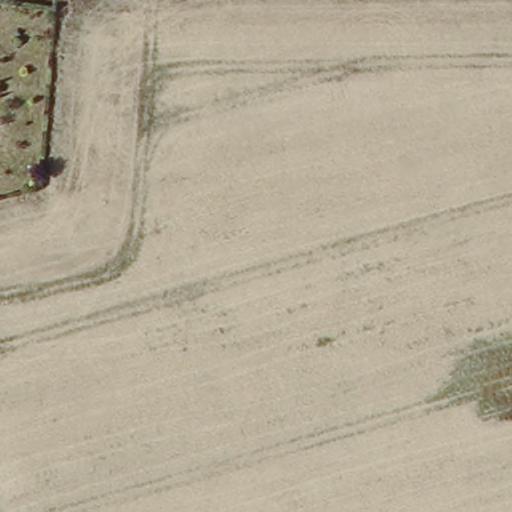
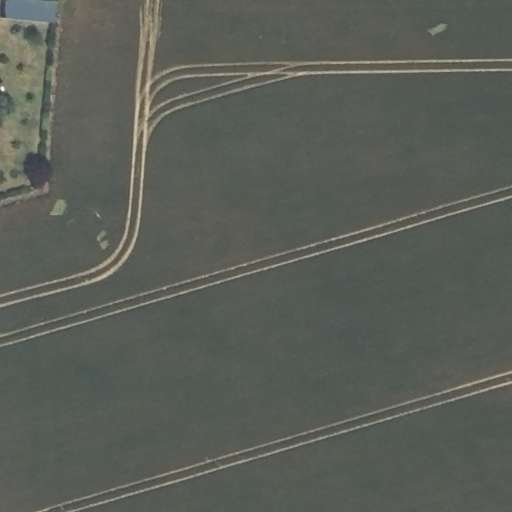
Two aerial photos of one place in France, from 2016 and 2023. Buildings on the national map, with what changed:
new [(5,0),(25,0),(54,3),(52,24),(2,19),(5,0)]

